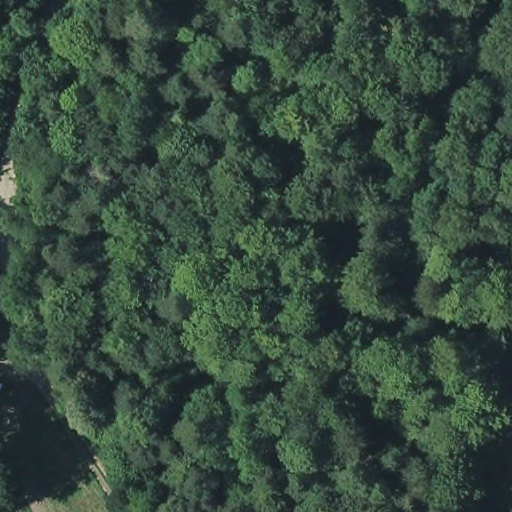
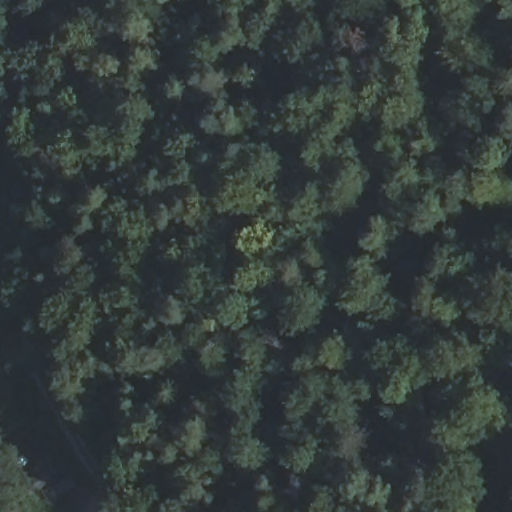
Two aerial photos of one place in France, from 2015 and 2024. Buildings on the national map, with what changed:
unchanged [(0,309),(8,353),(0,355),(0,309)]

